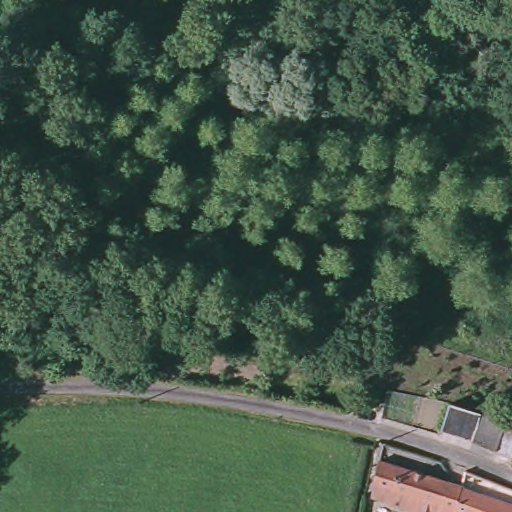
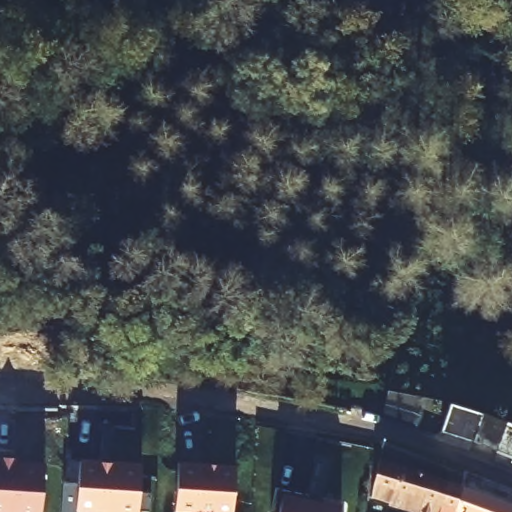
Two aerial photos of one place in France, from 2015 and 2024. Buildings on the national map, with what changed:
unchanged [(410,393),(406,405),(392,402),(395,390),(410,393)]
unchanged [(490,443),(467,434),(436,424),(445,397),(476,406),(498,415),(512,421),(512,439),(508,450),(490,443)]
unchanged [(442,500),(439,512),(433,512),(389,500),(390,497),(371,492),(380,454),(382,443),(390,446),(387,456),(456,479),(450,502),(442,500)]
new [(15,454),(15,461),(45,464),(42,512),(0,512),(0,453),(15,454)]
new [(75,484),(77,458),(100,459),(100,466),(105,467),(115,460),(140,463),(137,512),(73,512),(63,483),(75,484)]
new [(235,467),(233,512),(173,512),(178,462),(235,467)]
unchanged [(512,499),(512,512),(454,512),(461,481),(512,499)]
new [(342,505),(341,512),(279,512),(283,492),(342,505)]

